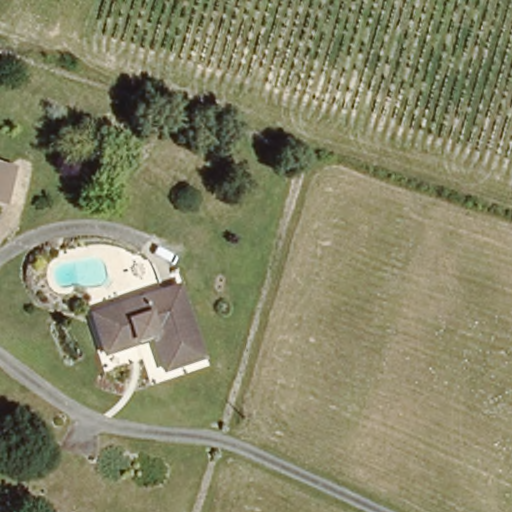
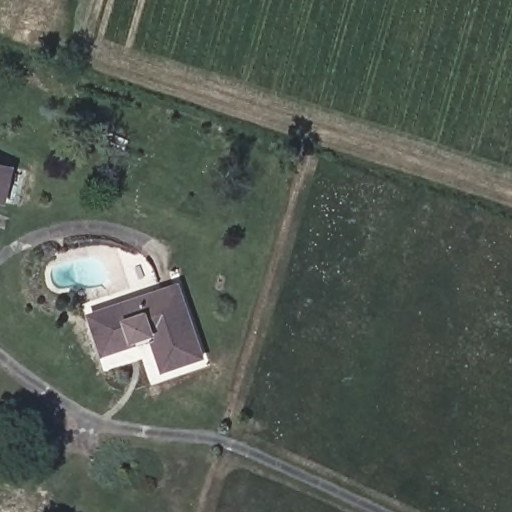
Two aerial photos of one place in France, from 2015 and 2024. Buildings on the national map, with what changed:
unchanged [(0,161),(16,164),(7,197),(0,195),(0,161)]
unchanged [(150,327),(135,332),(136,337),(102,346),(91,307),(177,281),(199,350),(160,360),(150,327)]

